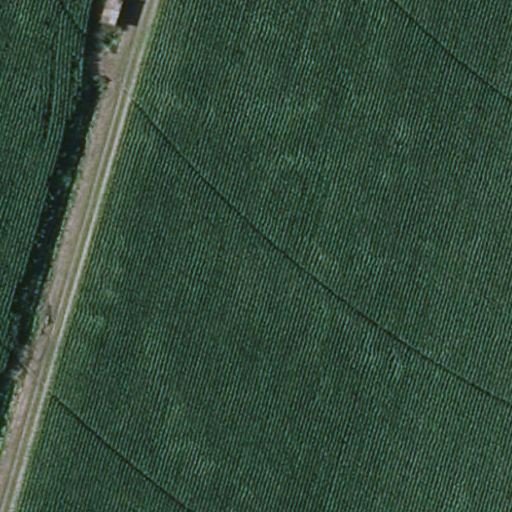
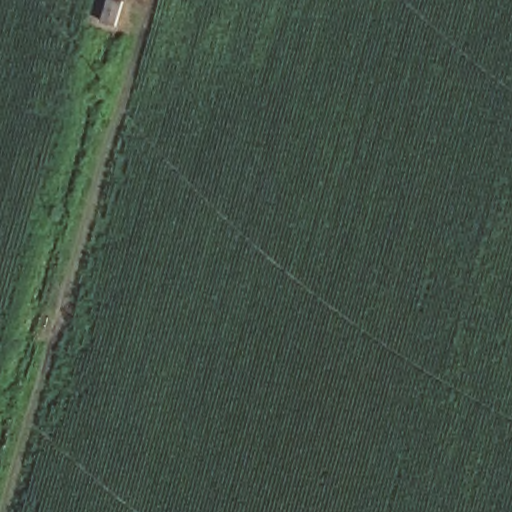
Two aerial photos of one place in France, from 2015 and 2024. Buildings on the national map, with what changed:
unchanged [(101,23),(109,0),(122,0),(114,26),(101,23)]

